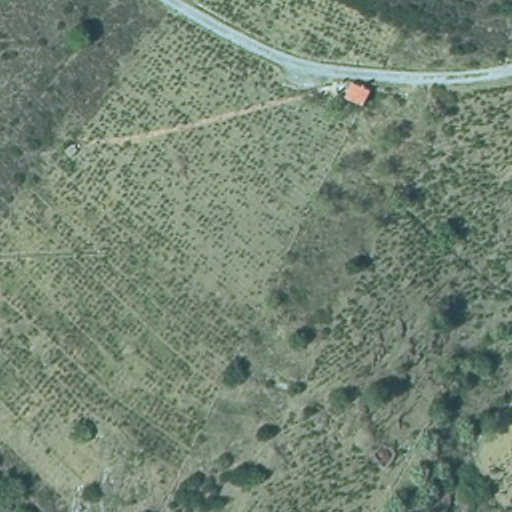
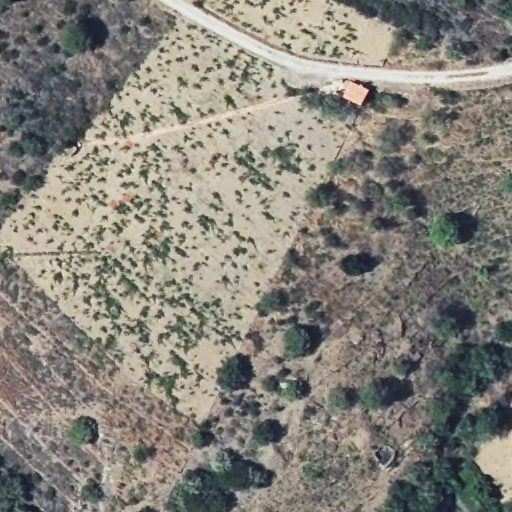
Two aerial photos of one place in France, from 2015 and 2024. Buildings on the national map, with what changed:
unchanged [(366,110),(346,103),(355,88),(373,93),(366,110)]

